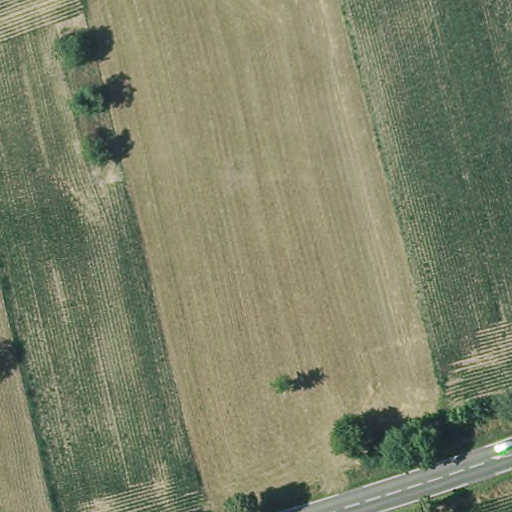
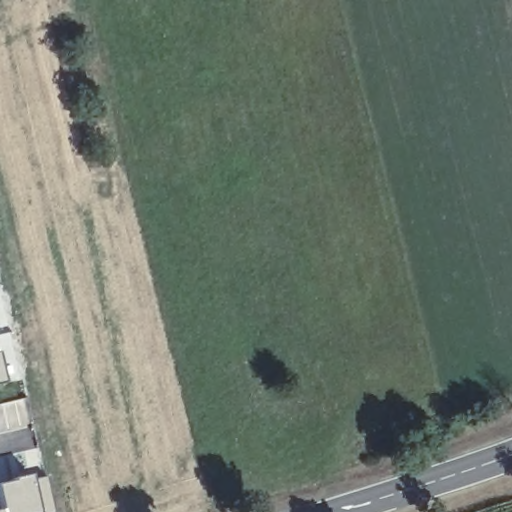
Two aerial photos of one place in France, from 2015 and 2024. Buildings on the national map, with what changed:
new [(3,382),(0,383),(0,371),(3,382)]
new [(26,396),(32,424),(0,432),(0,403),(26,396)]
new [(31,477),(46,473),(55,512),(1,512),(0,509),(0,482),(30,472),(31,477)]
new [(1,512),(0,512),(0,509),(1,512)]

